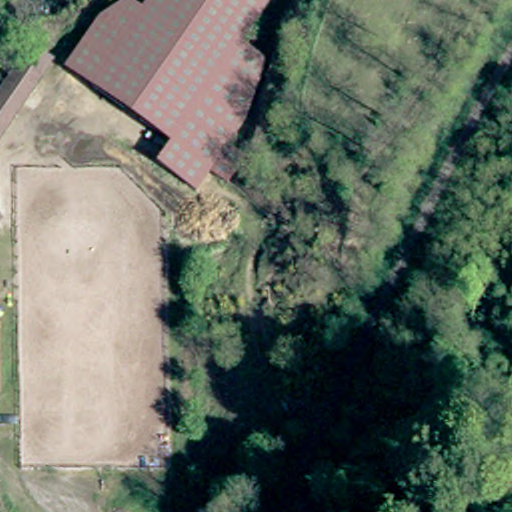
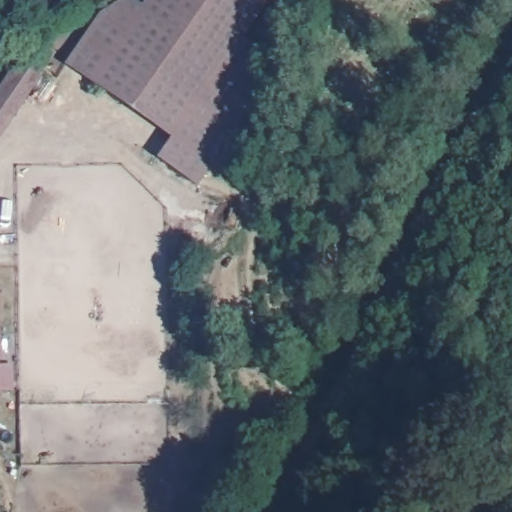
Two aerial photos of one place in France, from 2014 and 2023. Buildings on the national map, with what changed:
unchanged [(240,37),(275,62),(196,181),(160,157),(172,134),(65,64),(101,9),(117,0),(140,0),(143,2),(144,0),(266,0),(240,37)]
unchanged [(50,71),(0,145),(0,99),(27,59),(50,71)]
unchanged [(5,281),(5,394),(0,394),(0,281),(5,281)]

